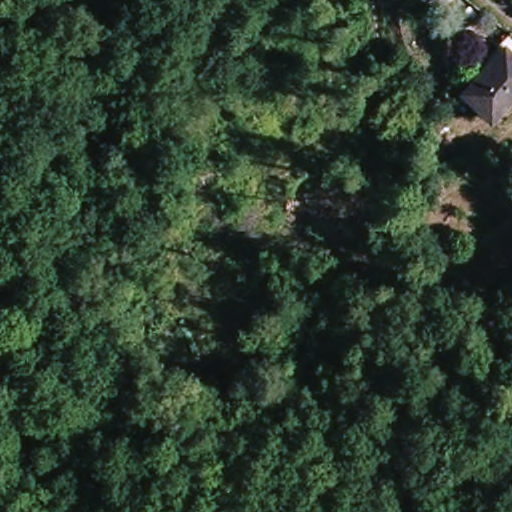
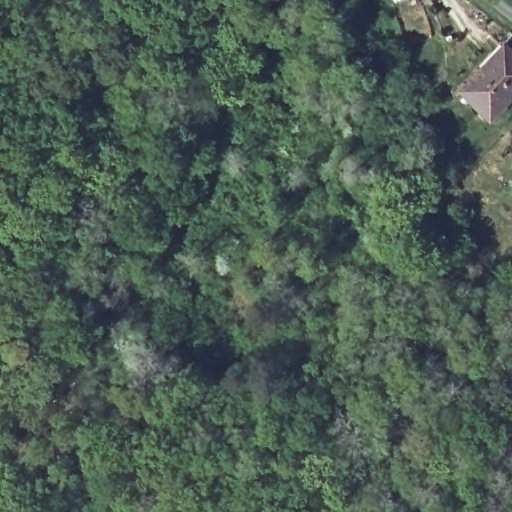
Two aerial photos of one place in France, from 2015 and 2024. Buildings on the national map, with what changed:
unchanged [(383,4),(382,0),(399,0),(399,1),(383,4)]
unchanged [(471,94),(511,50),(512,50),(512,103),(498,119),(471,94)]

